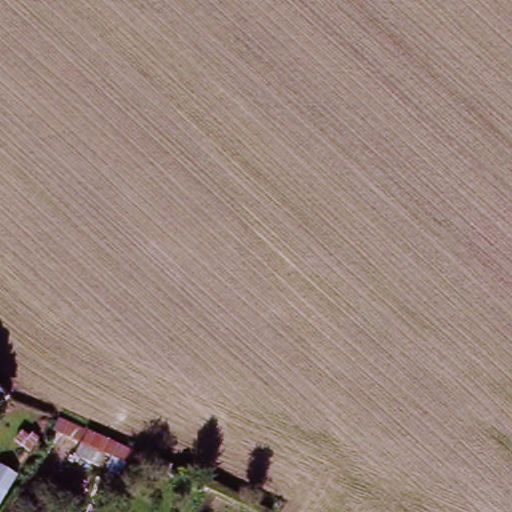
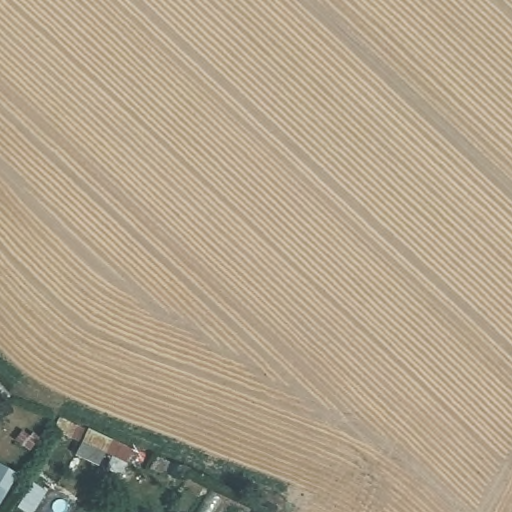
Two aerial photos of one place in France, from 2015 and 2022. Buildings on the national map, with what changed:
unchanged [(8,399),(0,406),(0,389),(8,399)]
unchanged [(128,456),(125,462),(53,430),(59,418),(131,450),(128,456)]
unchanged [(6,492),(0,502),(0,489),(6,492)]

